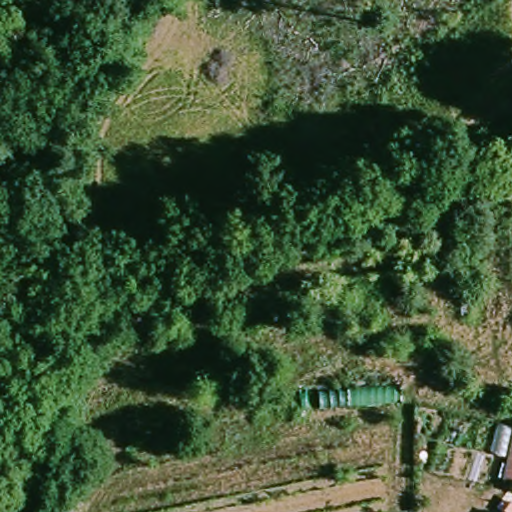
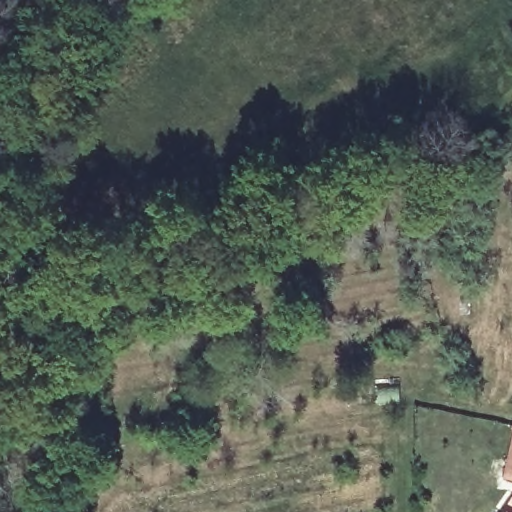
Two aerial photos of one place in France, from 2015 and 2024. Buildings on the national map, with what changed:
unchanged [(512,449),(512,478),(506,476),(512,449)]

